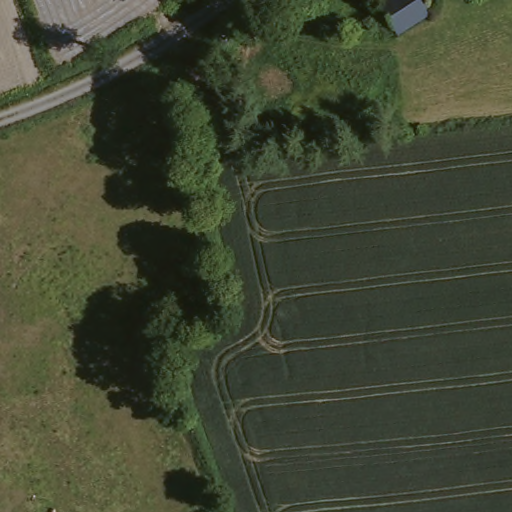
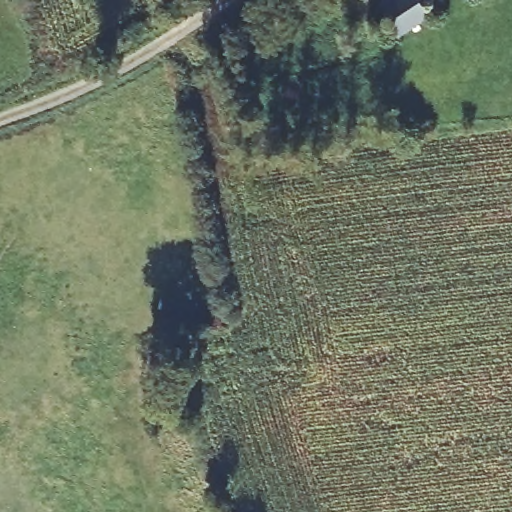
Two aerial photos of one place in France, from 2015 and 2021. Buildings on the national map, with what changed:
unchanged [(384,1),(386,0),(429,0),(436,11),(403,31),(384,1)]

